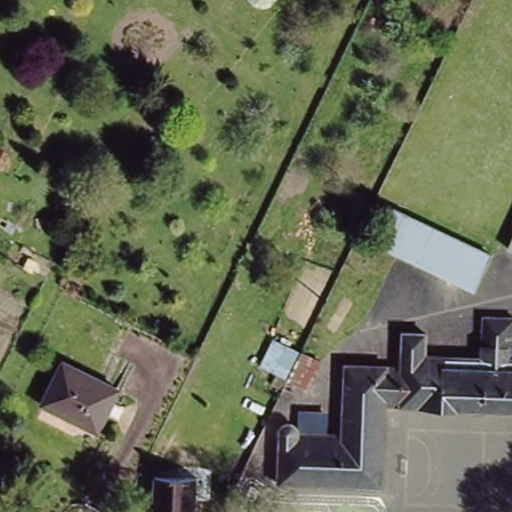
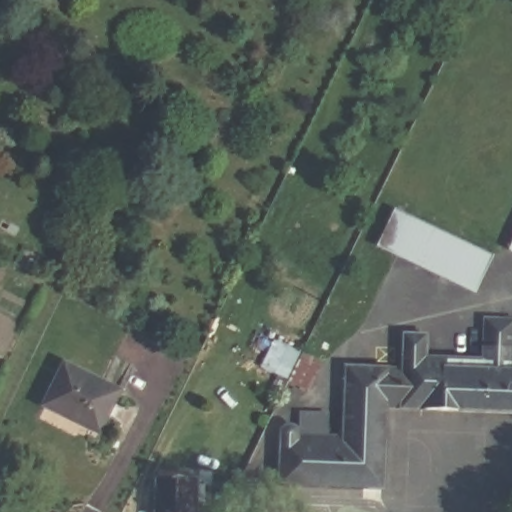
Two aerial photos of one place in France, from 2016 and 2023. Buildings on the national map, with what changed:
unchanged [(395,206),(493,249),(477,286),(375,244),(395,206)]
unchanged [(275,339),(282,344),(289,329),(297,333),(314,299),(322,302),(300,352),(321,363),(306,391),(287,381),(282,391),(272,386),(278,373),(261,364),(275,339)]
unchanged [(512,411),(390,407),(387,488),(282,484),(284,435),(287,429),(294,426),(302,429),(304,436),(346,438),(349,367),(406,369),(407,332),(431,333),(430,357),(487,359),(490,317),(512,318),(512,411)]
unchanged [(122,391),(102,431),(47,403),(67,364),(122,391)]
unchanged [(200,480),(198,512),(156,512),(159,477),(200,480)]

